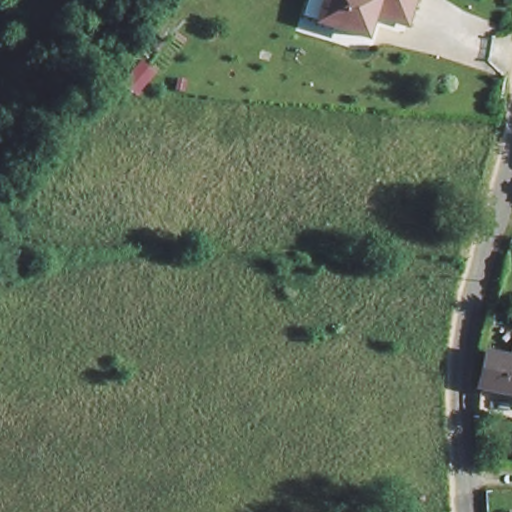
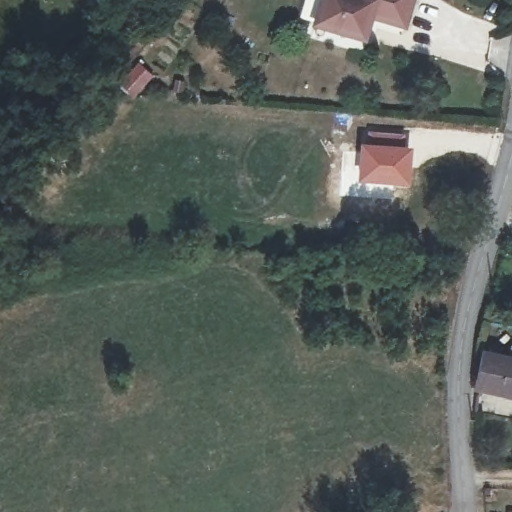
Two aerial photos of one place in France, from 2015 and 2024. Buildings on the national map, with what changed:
unchanged [(363,12),(355,33),(310,23),(315,0),(403,0),(398,19),(363,12)]
new [(360,141),(365,142),(366,130),(405,133),(403,145),(412,146),(410,187),(358,183),(360,141)]
unchanged [(482,350),(512,356),(512,397),(473,387),(482,350)]

